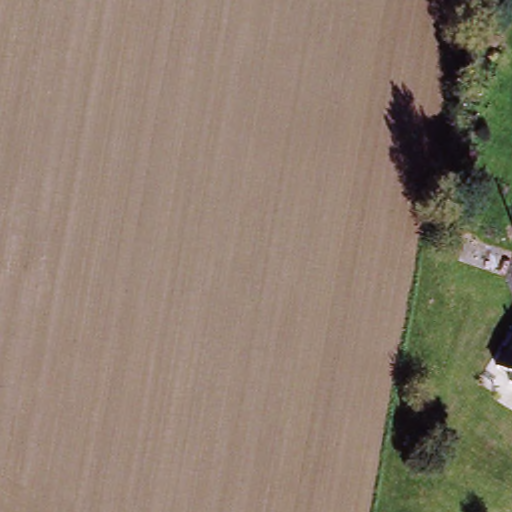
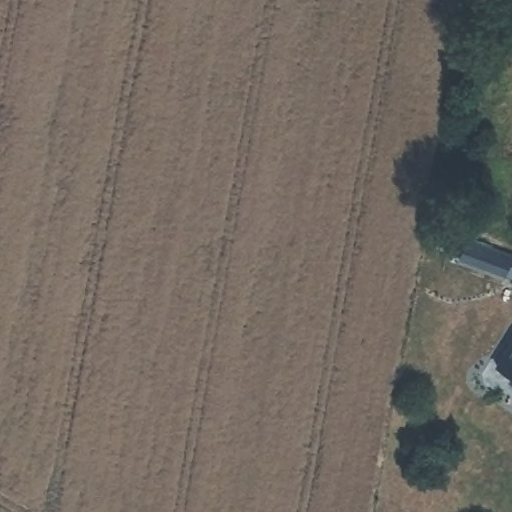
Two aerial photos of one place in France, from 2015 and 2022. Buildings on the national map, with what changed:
unchanged [(494,368),(512,339),(512,381),(494,368)]

